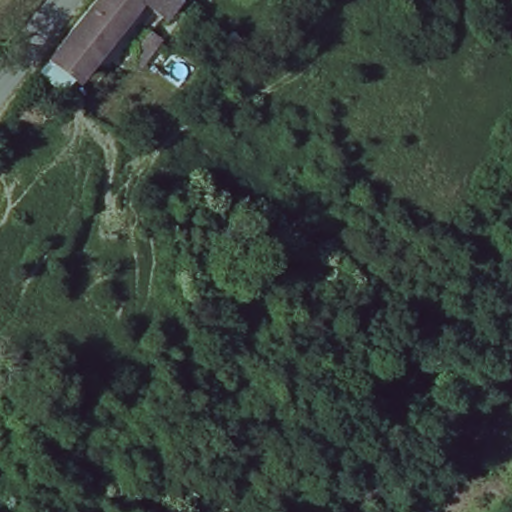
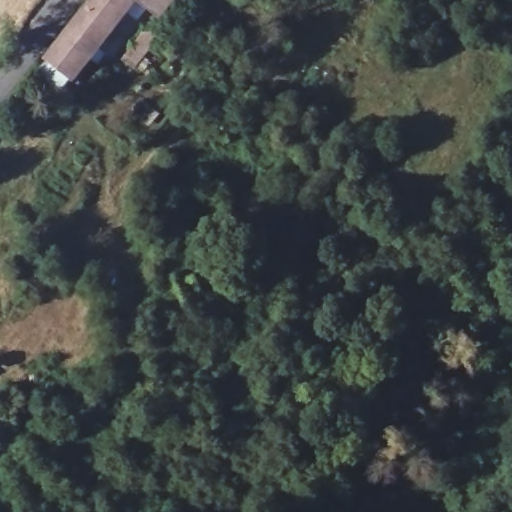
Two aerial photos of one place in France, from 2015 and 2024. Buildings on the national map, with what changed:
unchanged [(67,46),(99,0),(172,0),(158,20),(135,4),(101,53),(80,85),(53,67),(67,46)]
unchanged [(169,34),(150,60),(140,52),(159,26),(169,34)]

